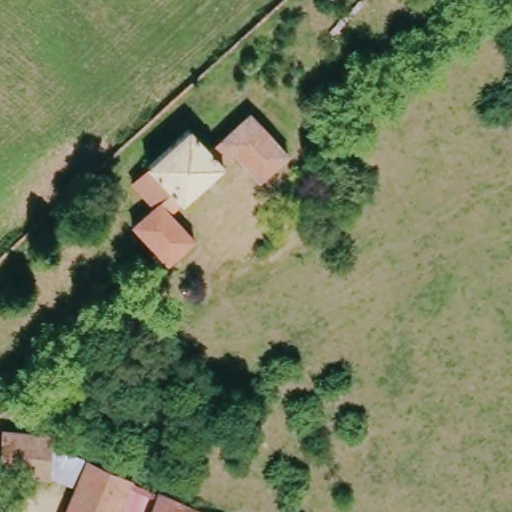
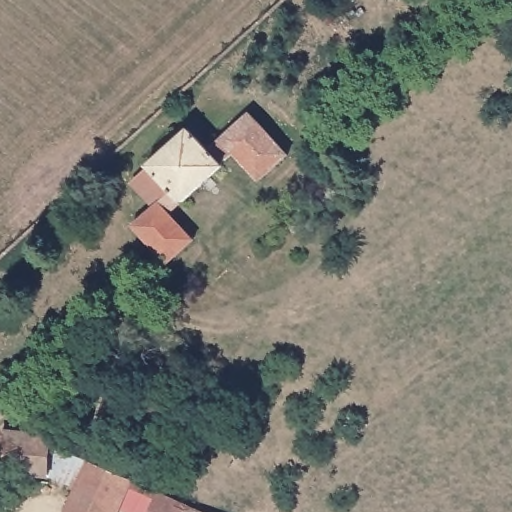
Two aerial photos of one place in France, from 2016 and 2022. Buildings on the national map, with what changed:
unchanged [(145,209),(116,175),(131,162),(137,168),(181,127),(205,153),(247,114),(283,153),(255,182),(229,154),(218,165),(221,170),(180,210),(174,205),(166,214),(192,241),(166,267),(127,228),(145,209)]
unchanged [(335,161),(314,181),(303,166),(322,148),(335,161)]
unchanged [(0,475),(0,435),(45,437),(44,450),(42,476),(9,476),(0,475)]
unchanged [(53,512),(74,464),(151,496),(143,512),(53,512)]

